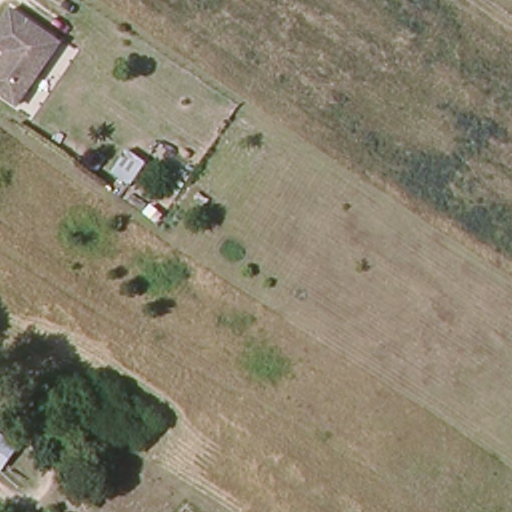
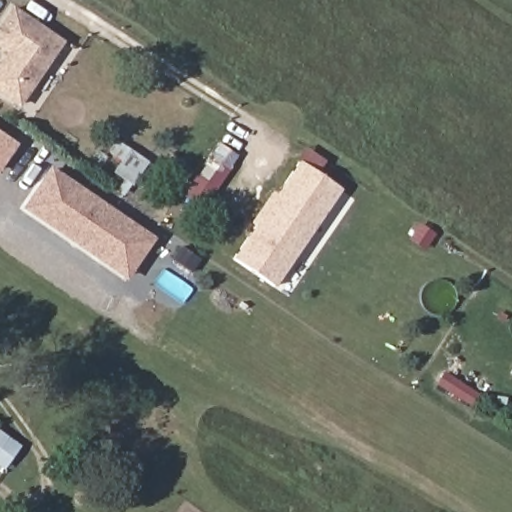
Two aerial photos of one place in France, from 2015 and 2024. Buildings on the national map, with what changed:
unchanged [(0,95),(0,65),(8,54),(0,48),(0,35),(17,9),(61,38),(19,104),(17,107),(0,95)]
new [(0,132),(17,144),(0,169),(0,132)]
new [(132,187),(112,172),(119,162),(106,153),(115,140),(149,162),(132,187)]
new [(232,259),(254,227),(250,224),(271,191),(276,195),(298,161),(342,190),(276,287),(232,259)]
new [(128,281),(21,209),(50,166),(155,238),(128,281)]
unchanged [(4,467),(0,464),(0,433),(19,446),(4,467)]

